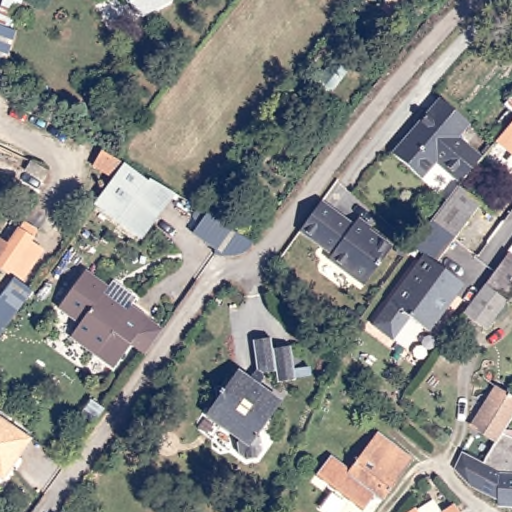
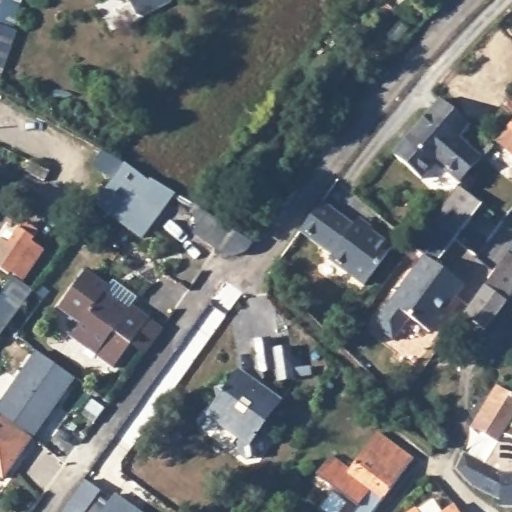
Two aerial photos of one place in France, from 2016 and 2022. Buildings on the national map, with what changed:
unchanged [(2,0),(21,0),(0,60),(0,5),(2,0)]
unchanged [(142,11),(135,9),(130,0),(164,0),(142,11)]
unchanged [(464,28),(482,9),(494,21),(475,38),(465,48),(455,38),(464,28)]
unchanged [(333,27),(342,34),(335,43),(326,36),(333,27)]
unchanged [(352,65),(331,90),(319,79),(339,54),(352,65)]
unchanged [(460,184),(436,162),(421,178),(392,152),(408,135),(409,137),(419,127),(417,125),(429,111),(441,98),(470,124),(458,137),(481,158),(460,184)]
unchanged [(512,121),(512,153),(496,139),(512,121)]
unchanged [(108,173),(91,163),(88,161),(96,145),(101,147),(108,152),(113,155),(119,158),(147,180),(136,195),(153,208),(134,233),(89,199),(95,191),(108,173)]
unchanged [(25,171),(31,160),(49,170),(42,181),(25,171)]
unchanged [(177,193),(142,239),(134,233),(153,208),(136,195),(147,180),(177,193)]
unchanged [(458,186),(482,203),(454,239),(430,221),(458,186)]
unchanged [(364,285),(328,260),(331,255),(299,232),(321,202),(353,225),(354,224),(356,221),(358,218),(369,227),(368,229),(392,246),(364,285)]
unchanged [(217,218),(227,204),(241,214),(231,227),(217,218)]
unchanged [(255,252),(254,254),(252,255),(251,256),(250,257),(250,258),(247,260),(246,261),(242,262),(242,263),(241,263),(240,263),(239,263),(238,264),(237,264),(236,264),(235,264),(232,264),(230,264),(229,264),(227,264),(226,264),(225,264),(223,263),(222,263),(220,262),(219,262),(219,261),(222,257),(176,228),(189,208),(201,215),(218,227),(235,238),(255,252)]
unchanged [(411,245),(430,221),(454,239),(435,264),(452,278),(463,286),(447,308),(444,305),(440,310),(441,316),(429,333),(417,324),(409,318),(392,341),(372,326),(423,256),(410,246),(411,245)]
unchanged [(1,237),(10,243),(21,228),(25,222),(28,225),(38,232),(32,241),(43,250),(22,281),(15,275),(10,271),(8,274),(0,268),(0,239),(1,237)]
unchanged [(476,294),(495,269),(507,252),(512,256),(512,290),(484,327),(463,311),(473,298),(476,294)]
unchanged [(113,367),(96,355),(72,336),(80,323),(59,307),(84,270),(108,288),(113,280),(136,297),(130,306),(148,319),(162,329),(143,354),(130,344),(113,367)]
unchanged [(13,277),(14,276),(31,289),(0,331),(0,295),(13,277)]
unchanged [(311,381),(295,383),(295,385),(277,387),(275,376),(263,377),(261,378),(256,375),(256,374),(253,346),(271,343),(273,354),(291,352),(293,361),(301,360),(303,373),(309,372),(311,381)]
new [(40,352),(76,379),(31,440),(0,417),(0,405),(40,352)]
unchanged [(208,421),(206,419),(216,404),(214,392),(226,390),(237,375),(249,384),(256,374),(256,375),(261,378),(263,377),(264,384),(259,391),(281,406),(271,421),(273,433),(261,436),(256,442),(260,444),(263,455),(257,464),(246,465),(238,458),(236,447),(239,443),(237,442),(227,455),(199,434),(208,421)]
unchanged [(512,506),(500,506),(501,500),(472,486),(454,468),(463,452),(483,463),(497,441),(482,432),(484,430),(473,424),(497,385),(512,395),(512,418),(502,434),(512,438),(512,506)]
unchanged [(31,440),(2,479),(0,478),(0,417),(31,440)]
unchanged [(413,459),(383,500),(374,493),(347,473),(349,470),(377,433),(413,459)]
unchanged [(362,510),(316,475),(330,456),(349,470),(347,473),(374,493),(362,510)]
unchanged [(99,492),(95,496),(107,504),(116,492),(142,512),(62,512),(85,482),(99,492)]
unchanged [(417,510),(433,500),(440,512),(410,512),(416,508),(417,510)]
unchanged [(458,512),(444,512),(454,505),(458,512)]

